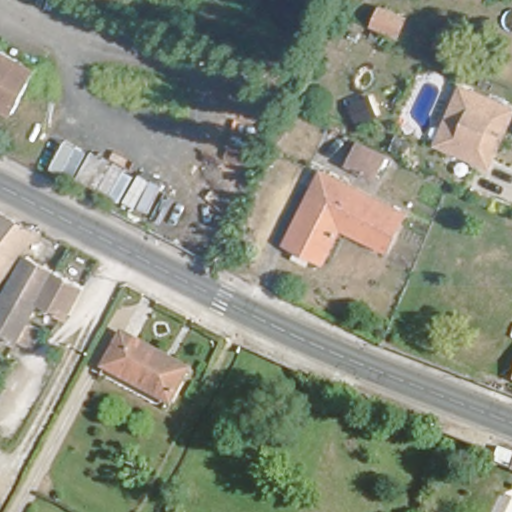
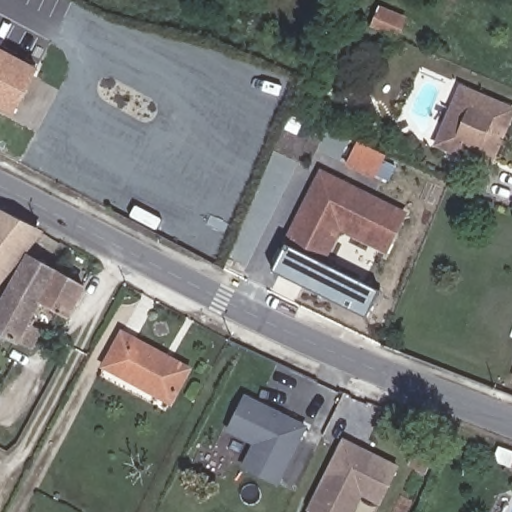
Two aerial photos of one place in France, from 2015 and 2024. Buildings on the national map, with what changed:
unchanged [(15,109),(0,100),(0,45),(37,65),(15,109)]
unchanged [(258,91),(269,67),(295,80),(284,104),(258,91)]
unchanged [(437,146),(459,87),(467,90),(505,105),(512,107),(512,108),(508,119),(494,154),(490,166),(482,164),(445,149),(437,146)]
unchanged [(344,163),(353,139),(380,150),(371,173),(344,163)]
unchanged [(302,204),(317,171),(337,179),(402,207),(387,245),(339,224),(322,260),(305,253),(285,244),(302,204)]
unchanged [(5,200),(44,220),(37,230),(0,275),(0,205),(5,200)]
unchanged [(81,277),(66,309),(40,297),(29,318),(47,328),(37,347),(0,326),(0,299),(27,251),(81,277)]
unchanged [(170,402),(105,368),(121,334),(189,367),(170,402)]
new [(308,425),(278,487),(240,468),(251,443),(225,430),(244,394),(308,425)]
new [(380,504),(362,496),(354,512),(311,512),(305,509),(342,437),(400,465),(380,504)]

